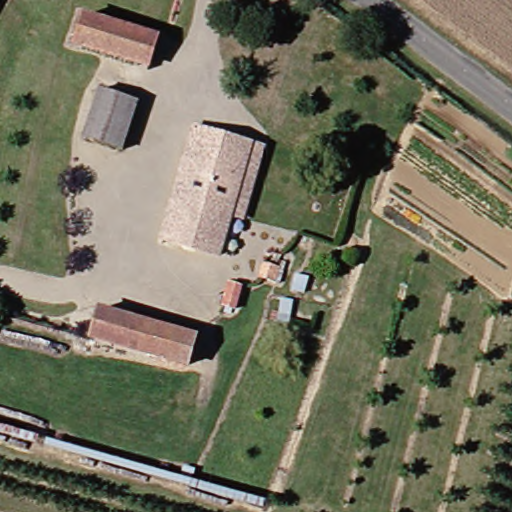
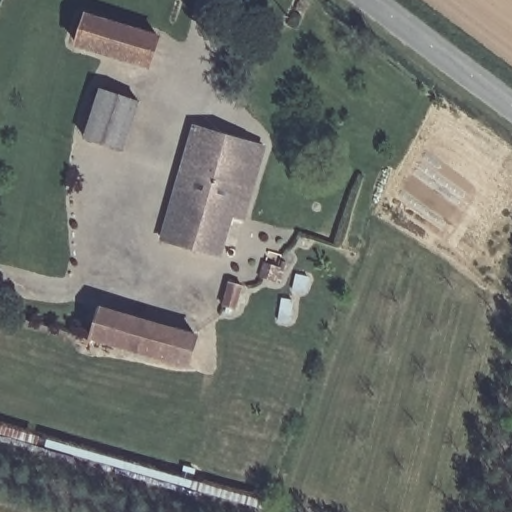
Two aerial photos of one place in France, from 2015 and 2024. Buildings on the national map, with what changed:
unchanged [(137,67),(71,40),(82,13),(147,39),(137,67)]
unchanged [(92,84),(129,100),(110,144),(74,129),(92,84)]
unchanged [(220,213),(206,251),(150,233),(187,128),(244,146),(220,213)]
unchanged [(261,152),(237,218),(220,213),(244,146),(261,152)]
unchanged [(177,365),(82,335),(91,307),(185,338),(177,365)]

